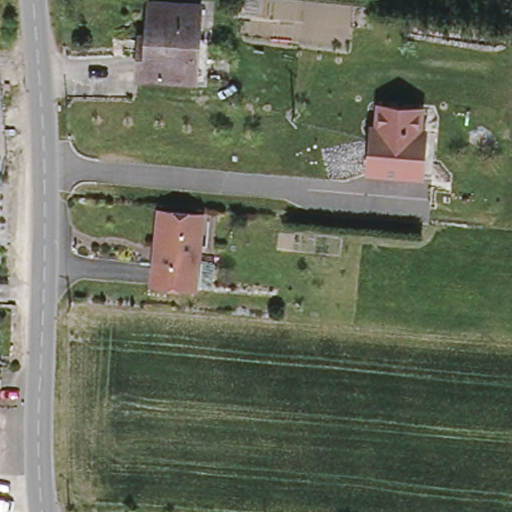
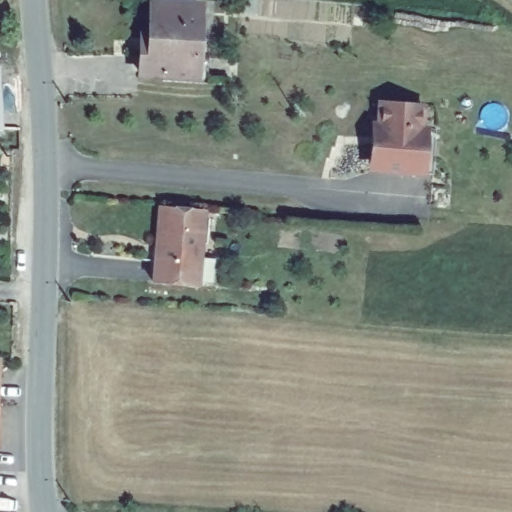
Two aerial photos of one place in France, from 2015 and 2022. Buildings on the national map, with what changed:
unchanged [(150,38),(153,2),(202,5),(196,77),(140,73),(143,38),(150,38)]
unchanged [(0,129),(0,92),(2,129),(0,129)]
unchanged [(431,145),(430,151),(429,170),(373,165),(366,157),(367,145),(369,120),(374,120),(376,98),(419,102),(418,124),(423,124),(433,125),(431,145)]
unchanged [(201,210),(194,285),(149,281),(156,206),(201,210)]

